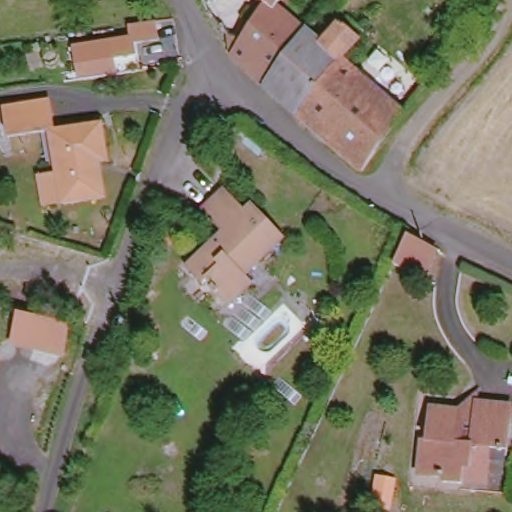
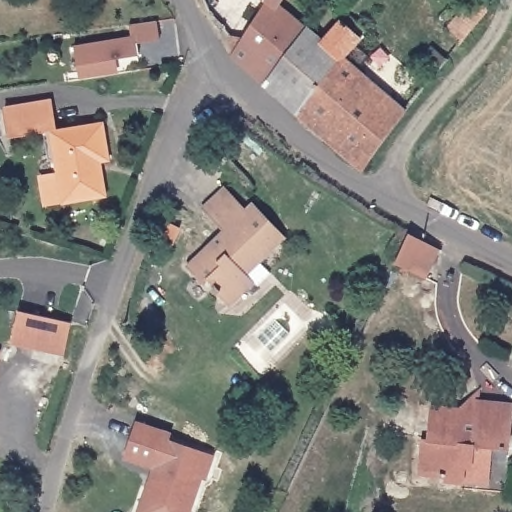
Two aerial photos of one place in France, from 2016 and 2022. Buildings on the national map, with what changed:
unchanged [(224,57),(254,6),(244,0),(271,0),(266,7),(298,31),(258,86),(224,57)]
unchanged [(469,35),(454,24),(471,0),(487,0),(492,4),(469,35)]
unchanged [(313,42),(331,19),(351,35),(332,57),(361,80),(396,115),(357,169),(344,157),(338,161),(333,156),(336,151),(304,124),(299,128),(292,121),(296,116),(258,86),(298,31),(313,42)]
unchanged [(69,64),(68,55),(66,45),(126,36),(124,24),(151,20),(153,33),(128,36),(130,47),(101,51),(102,59),(69,64)]
unchanged [(60,100),(65,130),(19,137),(14,108),(60,100)]
unchanged [(60,131),(112,122),(118,160),(110,160),(115,195),(110,196),(73,204),(55,206),(50,176),(68,174),(60,131)]
unchanged [(239,207),(246,201),(279,237),(242,273),(248,280),(223,305),(205,289),(208,286),(201,280),(198,284),(183,267),(221,229),(200,206),(220,187),(239,207)]
unchanged [(444,255),(430,284),(401,271),(415,239),(444,255)]
unchanged [(71,324),(64,355),(13,344),(19,313),(71,324)]
unchanged [(0,367),(0,352),(3,353),(0,367)]
unchanged [(504,445),(485,443),(483,484),(458,485),(436,481),(436,471),(414,472),(416,439),(426,403),(458,406),(469,392),(507,400),(504,445)]
new [(168,440),(213,455),(206,480),(201,478),(191,512),(139,512),(151,467),(124,459),(136,421),(171,433),(168,440)]

